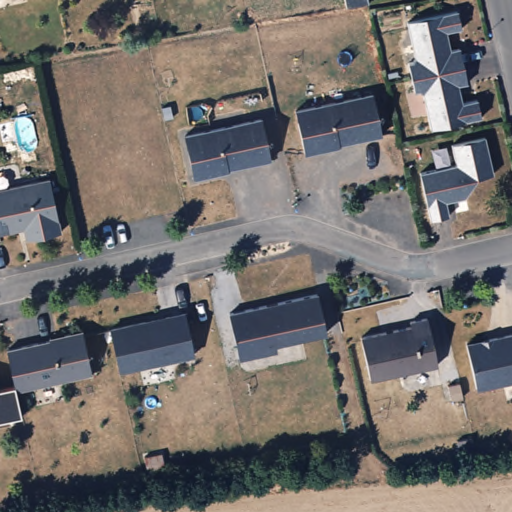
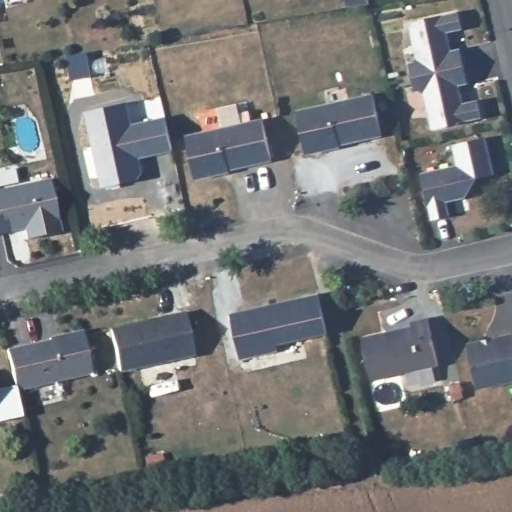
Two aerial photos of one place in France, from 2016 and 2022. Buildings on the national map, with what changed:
unchanged [(340,4),(339,0),(364,0),(340,4)]
unchanged [(409,65),(413,64),(416,60),(408,23),(458,11),(463,30),(447,34),(452,52),(462,50),(465,67),(412,79),(409,65)]
unchanged [(465,67),(470,85),(460,88),(463,105),(477,101),(481,119),(432,130),(424,95),(420,92),(415,93),(412,79),(465,67)]
unchanged [(372,96),(381,136),(337,146),(337,149),(305,155),(296,113),(372,96)]
new [(129,101),(134,122),(165,115),(174,150),(141,156),(143,169),(138,177),(102,186),(85,110),(129,101)]
unchanged [(261,125),(269,165),(225,175),(225,177),(192,184),(184,142),(261,125)]
unchanged [(451,171),(446,151),(478,144),(488,180),(470,185),(460,205),(442,209),(445,222),(426,226),(416,180),(451,171)]
unchanged [(64,231),(30,239),(27,228),(0,234),(0,190),(51,179),(64,231)]
unchanged [(320,292),(328,331),(278,341),(280,348),(244,355),(234,310),(320,292)]
unchanged [(185,315),(194,358),(119,373),(110,331),(185,315)]
unchanged [(412,328),(411,324),(427,320),(437,367),(371,383),(362,341),(412,328)]
unchanged [(66,337),(66,335),(82,331),(92,374),(16,390),(7,349),(66,337)]
unchanged [(512,337),(512,382),(475,390),(465,348),(511,337),(512,337)]

